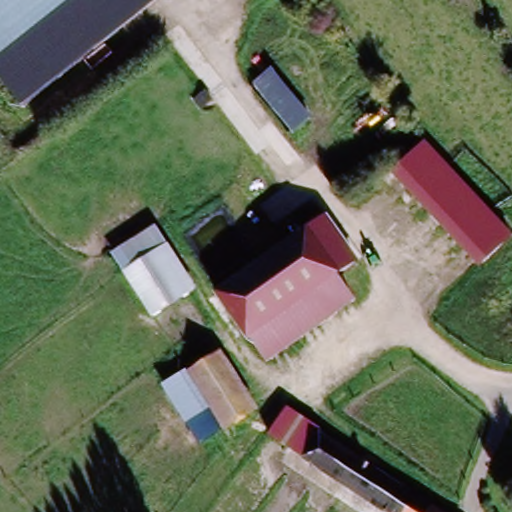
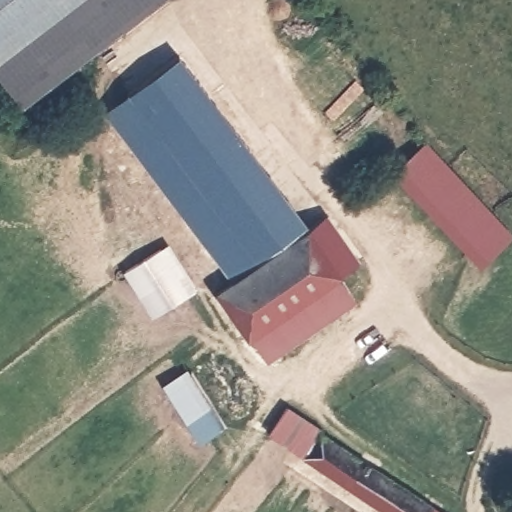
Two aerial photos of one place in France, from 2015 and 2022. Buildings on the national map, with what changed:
unchanged [(0,0),(159,0),(21,105),(0,79),(0,0)]
new [(158,185),(182,166),(127,95),(178,56),(312,231),(309,234),(245,278),(235,285),(158,185)]
demolished [(270,69),(309,120),(288,135),(250,85),(270,69)]
unchanged [(432,140),(512,231),(512,245),(491,263),(405,163),(432,140)]
unchanged [(329,221),(360,265),(342,278),(309,234),(329,221)]
unchanged [(254,340),(240,346),(210,303),(245,278),(309,234),(342,278),(254,340)]
unchanged [(153,320),(117,265),(160,235),(196,290),(153,320)]
unchanged [(254,340),(342,278),(359,302),(270,362),(254,340)]
unchanged [(260,413),(222,435),(218,429),(187,380),(222,354),(260,413)]
unchanged [(218,429),(222,435),(196,451),(154,387),(180,370),(187,380),(218,429)]
new [(267,438),(286,405),(322,427),(318,434),(300,460),(267,438)]
unchanged [(300,460),(318,434),(436,512),(380,512),(300,460)]

